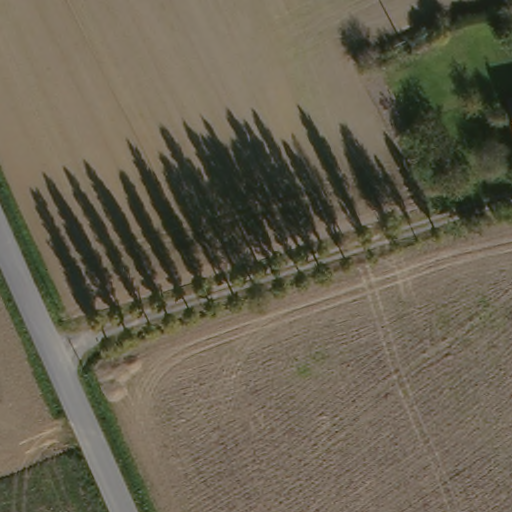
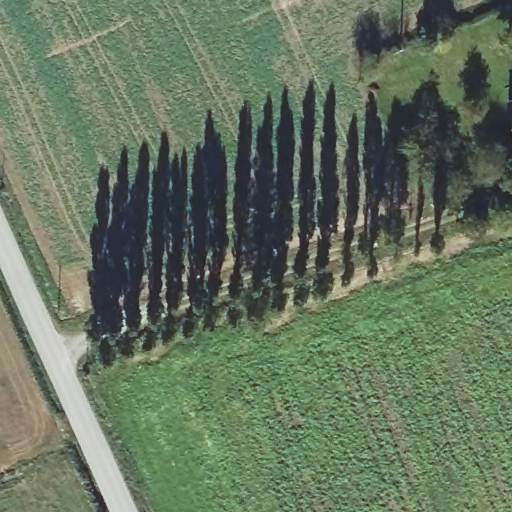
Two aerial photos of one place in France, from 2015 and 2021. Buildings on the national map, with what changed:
unchanged [(508,101),(512,100),(512,115),(508,101)]

